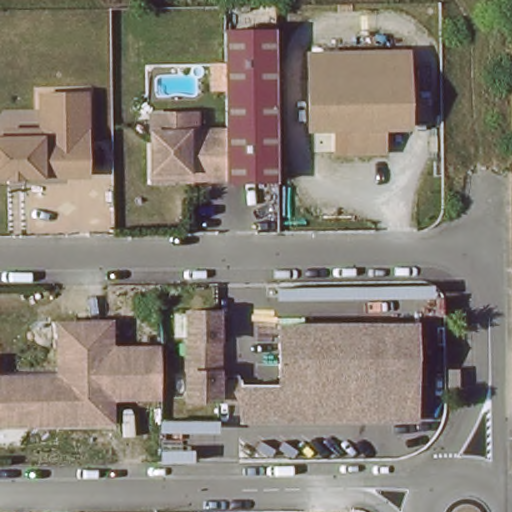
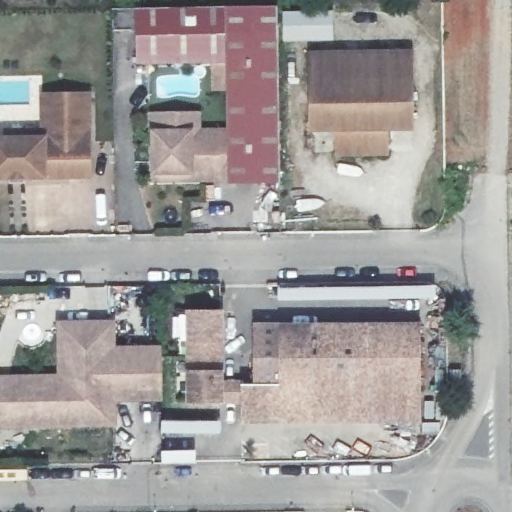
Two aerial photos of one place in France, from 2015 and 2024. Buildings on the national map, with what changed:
new [(212,90),(211,62),(135,63),(135,9),(283,7),(285,33),(233,33),(234,88),(212,90)]
unchanged [(160,174),(160,134),(160,117),(184,116),(205,116),(205,134),(235,133),(233,33),(285,33),(285,34),(287,184),(235,184),(235,181),(197,181),(160,181),(160,174)]
unchanged [(417,53),(418,128),(392,128),(393,153),(344,154),(344,129),(318,129),(317,54),(417,53)]
unchanged [(96,93),(98,175),(0,178),(0,139),(13,138),(13,131),(51,130),(50,94),(96,93)]
unchanged [(228,405),(197,405),(197,315),(227,315),(228,405)]
unchanged [(173,403),(123,404),(123,429),(0,431),(0,365),(6,364),(7,382),(70,382),(70,329),(122,328),(122,354),(172,353),(173,403)]
unchanged [(427,328),(427,423),(251,424),(251,390),(289,389),(288,330),(427,328)]
new [(161,420),(221,420),(220,434),(161,434),(161,420)]

